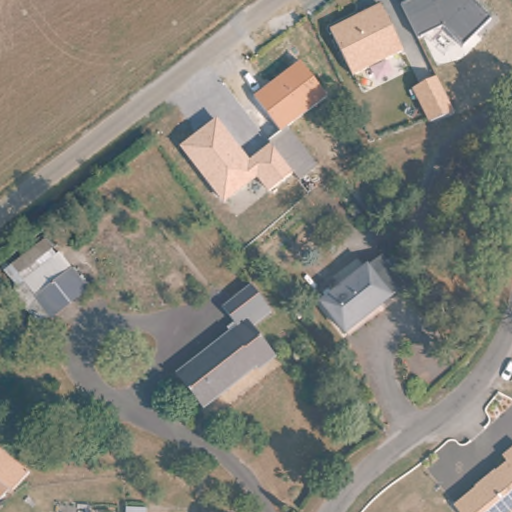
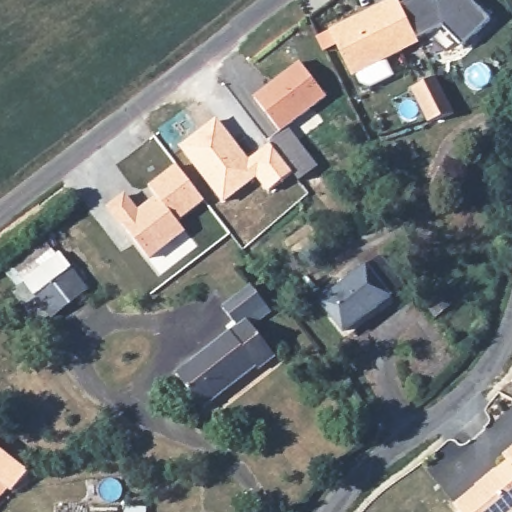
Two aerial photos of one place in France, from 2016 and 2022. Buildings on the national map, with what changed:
unchanged [(417,38),(420,46),(353,77),(329,28),(393,0),(399,0),(402,5),(413,0),(433,0),(436,4),(442,0),(468,0),(488,19),(462,44),(442,24),(417,38)]
unchanged [(276,132),(251,94),(300,58),(327,97),(291,120),(276,132)]
unchanged [(426,121),(411,89),(438,76),(455,112),(426,121)]
unchanged [(267,194),(256,179),(223,205),(177,147),(218,117),(250,160),(275,142),(297,171),(267,194)]
unchanged [(291,120),(322,160),(307,171),(301,176),(270,137),(276,132),(291,120)]
new [(178,221),(185,231),(148,260),(106,207),(125,192),(138,209),(155,196),(148,186),(175,164),(204,202),(178,221)]
unchanged [(55,254),(83,291),(46,319),(20,282),(55,254)]
unchanged [(324,304),(367,270),(370,268),(381,259),(404,288),(393,296),(389,299),(347,333),(324,304)]
unchanged [(240,324),(225,306),(254,284),(273,310),(255,325),(280,354),(262,370),(259,366),(207,407),(180,372),(240,324)]
new [(29,472),(11,493),(0,485),(0,450),(29,472)]
unchanged [(512,462),(507,456),(512,451),(512,462)]
unchanged [(482,487),(484,489),(501,476),(499,473),(512,462),(512,512),(466,512),(460,504),(482,487)]

